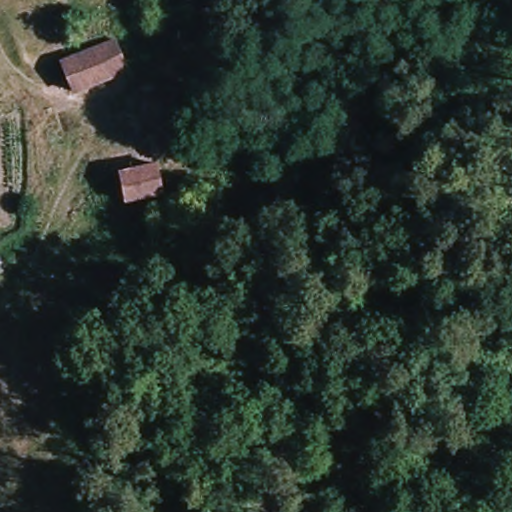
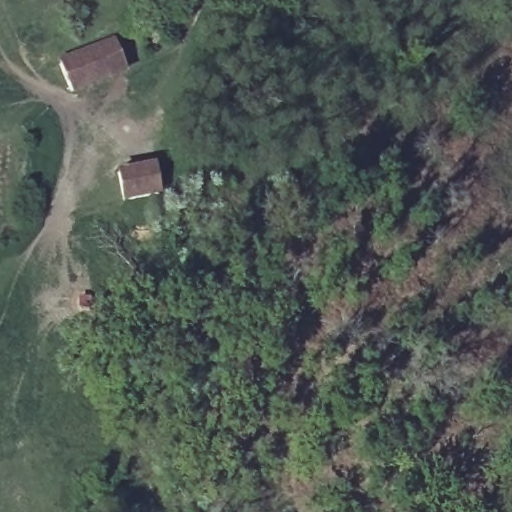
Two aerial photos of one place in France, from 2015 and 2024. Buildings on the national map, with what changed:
unchanged [(74,55),(106,43),(128,34),(138,62),(84,82),(58,92),(48,65),(74,55)]
unchanged [(150,166),(156,190),(123,198),(117,172),(150,166)]

